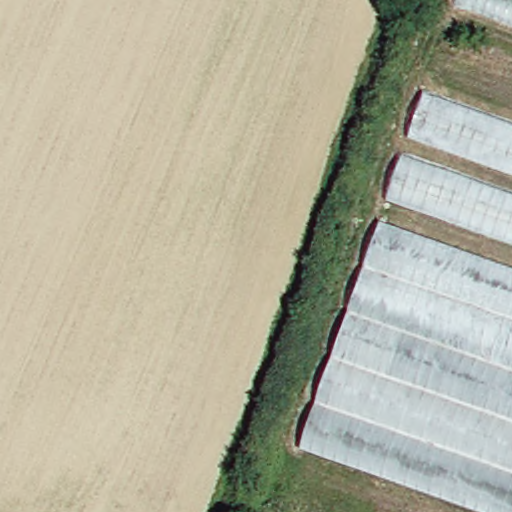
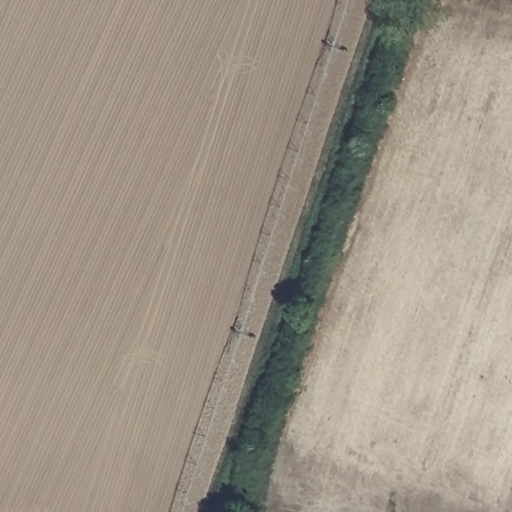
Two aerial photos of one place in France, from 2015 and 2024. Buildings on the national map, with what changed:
demolished [(445,3),(447,0),(512,0),(512,27),(445,3)]
demolished [(400,133),(417,91),(512,126),(512,173),(400,133)]
demolished [(379,196),(393,154),(512,197),(512,244),(379,196)]
demolished [(486,512),(292,442),(371,220),(512,270),(512,512),(486,512)]

